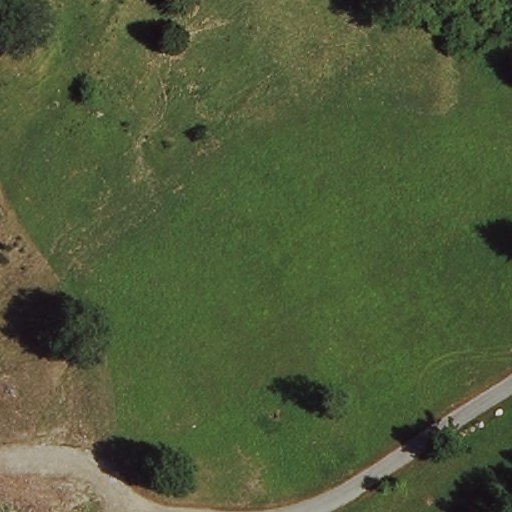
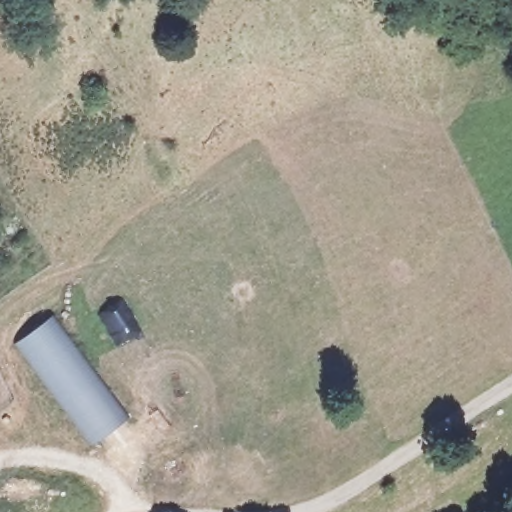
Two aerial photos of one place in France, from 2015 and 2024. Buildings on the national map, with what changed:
new [(55,315),(130,418),(91,446),(15,345),(55,315)]

